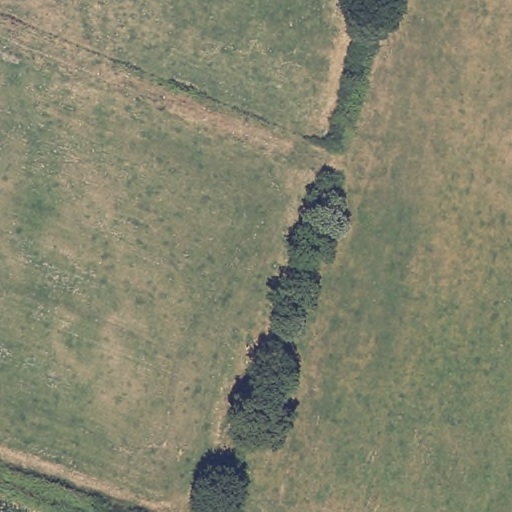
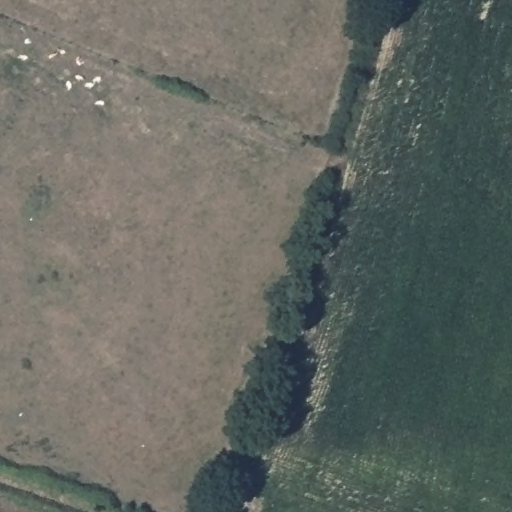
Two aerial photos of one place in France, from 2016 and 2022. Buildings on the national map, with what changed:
[]

